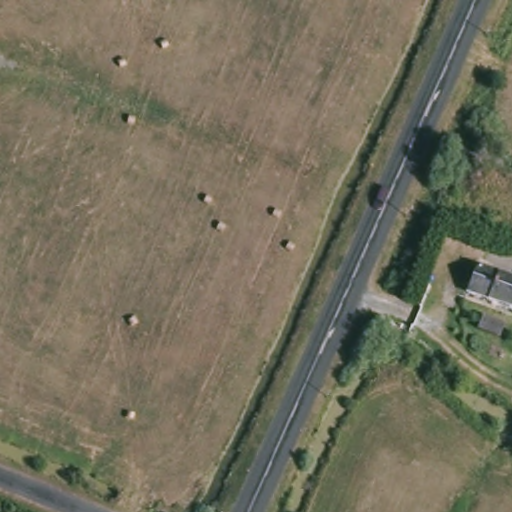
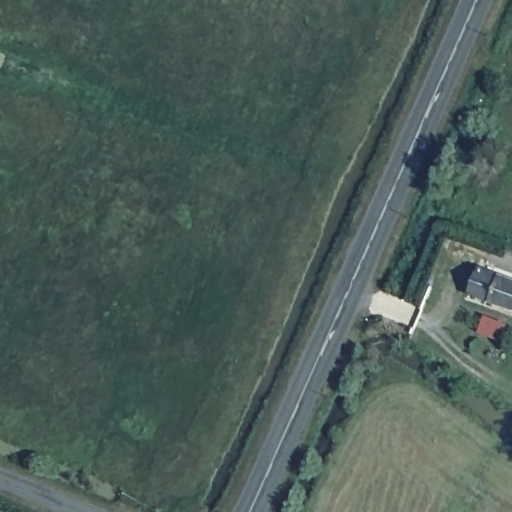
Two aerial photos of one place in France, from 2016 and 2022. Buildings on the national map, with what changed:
unchanged [(512,314),(474,301),(485,273),(512,282),(512,314)]

